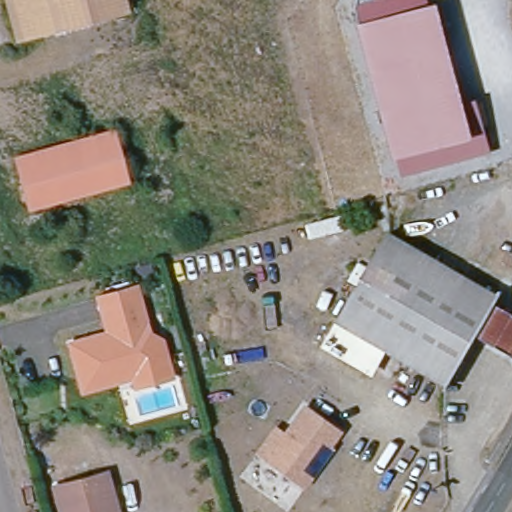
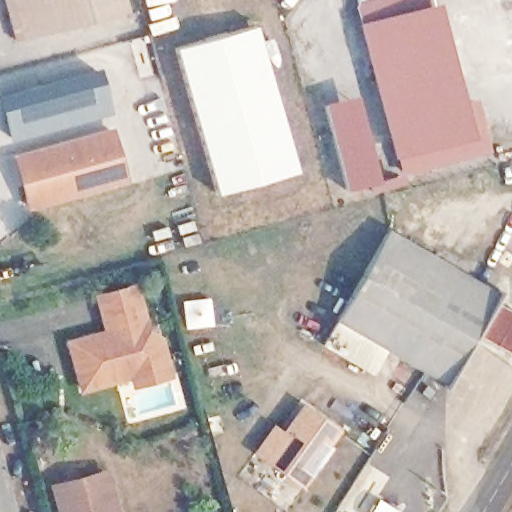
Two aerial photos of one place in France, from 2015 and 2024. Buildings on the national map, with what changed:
unchanged [(22,37),(11,0),(126,0),(129,7),(22,37)]
unchanged [(453,112),(475,107),(486,150),(401,171),(358,4),(357,0),(424,0),(453,112)]
new [(298,171),(217,194),(176,48),(257,23),(298,171)]
new [(101,79),(110,113),(11,140),(0,107),(101,79)]
new [(401,171),(405,182),(372,192),(370,184),(346,190),(323,104),(357,95),(379,178),(401,171)]
unchanged [(115,129),(128,177),(31,203),(18,154),(115,129)]
unchanged [(450,377),(335,312),(384,227),(499,291),(477,331),(450,377)]
unchanged [(136,381),(133,372),(82,386),(70,340),(107,330),(98,294),(134,284),(140,304),(147,330),(160,337),(164,353),(170,372),(136,381)]
unchanged [(512,313),(512,354),(476,334),(477,331),(492,303),(512,313)]
unchanged [(390,345),(373,373),(321,342),(336,314),(340,315),(390,345)]
unchanged [(274,432),(284,438),(303,408),(337,430),(302,484),(268,462),(258,456),(274,432)]
unchanged [(109,470),(120,512),(62,512),(54,484),(109,470)]

